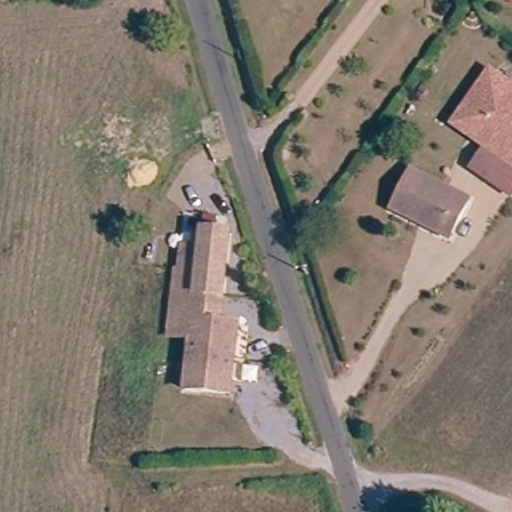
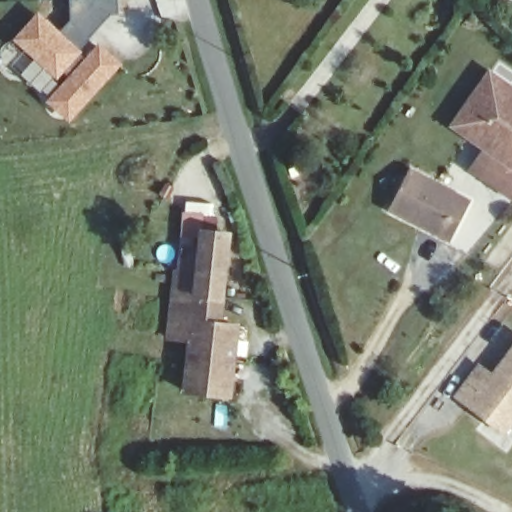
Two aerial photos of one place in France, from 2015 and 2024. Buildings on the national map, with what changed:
new [(60,32),(71,21),(70,0),(74,0),(119,0),(120,16),(110,16),(81,49),(84,52),(80,55),(85,58),(100,42),(124,65),(70,123),(46,101),(69,78),(65,73),(58,80),(13,40),(39,12),(60,32)]
unchanged [(512,86),(512,194),(477,172),(491,150),(505,129),(499,125),(491,123),(466,107),(490,72),(512,86)]
unchanged [(466,107),(491,123),(499,125),(505,129),(491,150),(455,126),(466,107)]
unchanged [(470,203),(447,241),(393,210),(416,172),(470,203)]
unchanged [(221,297),(219,323),(236,325),(230,395),(185,391),(190,341),(169,339),(175,274),(179,274),(181,249),(193,250),(194,240),(199,241),(200,231),(226,234),(221,297)]
new [(456,398),(480,365),(493,372),(512,348),(512,426),(506,433),(456,398)]

